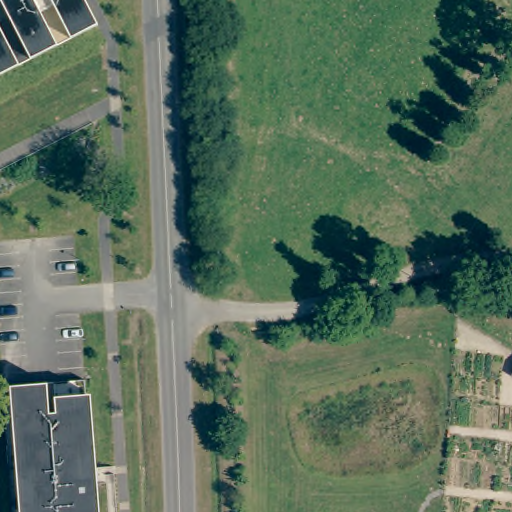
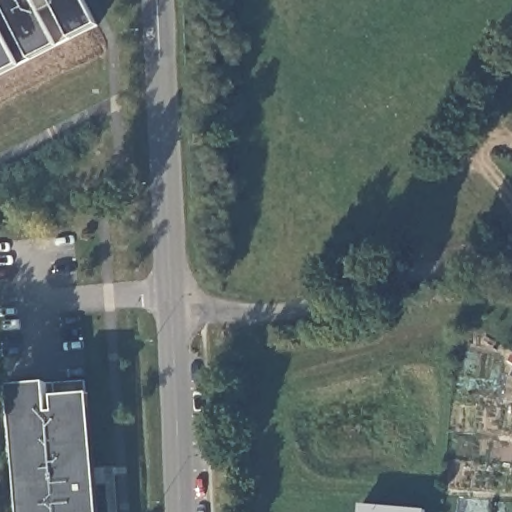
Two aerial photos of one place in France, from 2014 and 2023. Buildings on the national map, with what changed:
unchanged [(40,55),(0,75),(0,0),(83,0),(96,26),(40,55)]
unchanged [(84,380),(94,512),(26,512),(16,386),(84,380)]
new [(358,505),(425,511),(425,512),(357,512),(358,505)]

